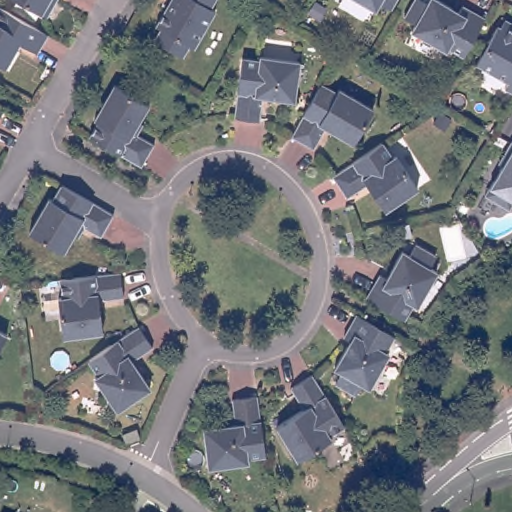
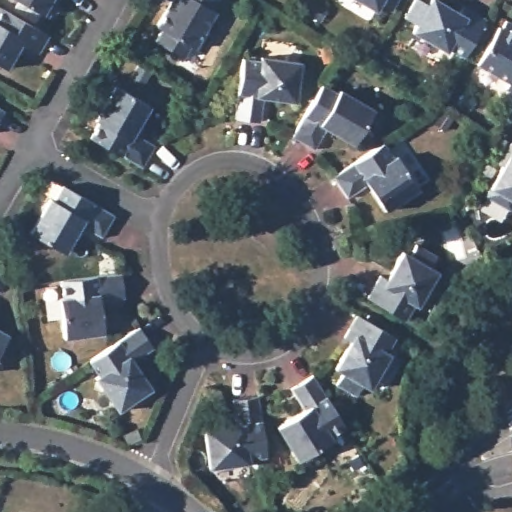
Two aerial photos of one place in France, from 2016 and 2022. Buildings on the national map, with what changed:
unchanged [(9,0),(60,0),(47,22),(42,19),(9,0)]
unchanged [(66,0),(71,0),(69,2),(66,0)]
unchanged [(205,13),(210,16),(188,53),(183,50),(177,62),(149,46),(156,34),(151,31),(169,0),(209,0),(212,2),(205,13)]
unchanged [(384,8),(379,15),(353,0),(404,0),(395,15),(384,8)]
unchanged [(447,47),(445,51),(411,31),(415,24),(404,17),(414,0),(419,0),(427,4),(429,0),(436,0),(458,13),(462,6),(485,19),(463,56),(447,47)]
unchanged [(36,58),(19,48),(5,73),(0,70),(0,12),(47,40),(36,58)]
unchanged [(508,82),(476,64),(497,26),(500,28),(504,20),(512,25),(512,93),(504,88),(508,82)]
unchanged [(242,63),(260,66),(260,62),(300,67),(294,107),(263,102),(259,127),(234,123),(242,63)]
unchanged [(321,89),(337,99),(339,95),(373,115),(353,149),(326,133),(313,155),(291,142),(321,89)]
unchanged [(137,139),(154,149),(141,172),(89,142),(98,127),(94,124),(114,90),(148,110),(139,127),(142,129),(137,139)]
unchanged [(0,122),(0,114),(3,116),(0,122)]
unchanged [(381,147),(391,162),(395,160),(417,193),(383,215),(366,188),(345,202),(331,180),(381,147)]
unchanged [(503,215),(479,201),(497,171),(493,169),(506,147),(512,151),(512,209),(508,206),(503,215)]
unchanged [(73,240),(63,257),(29,237),(49,203),(52,205),(61,190),(113,220),(101,242),(83,232),(77,242),(73,240)]
unchanged [(379,280),(385,284),(401,256),(409,261),(415,250),(435,261),(428,272),(436,276),(416,311),(412,308),(403,324),(366,302),(379,280)]
unchanged [(123,298),(98,301),(102,332),(63,337),(58,298),(62,297),(60,280),(120,272),(123,298)]
unchanged [(388,341),(380,357),(383,359),(363,393),(356,389),(350,400),(330,389),(336,378),(329,373),(345,346),(338,342),(351,320),(388,341)]
unchanged [(6,334),(0,346),(0,331),(6,334)]
unchanged [(153,352),(132,366),(150,392),(117,415),(95,382),(99,380),(89,365),(138,331),(153,352)]
unchanged [(343,431),(328,440),(330,444),(297,465),(276,431),(303,414),(290,393),(312,379),(343,431)]
unchanged [(265,456),(247,458),(248,462),(208,467),(203,428),(235,424),(231,399),(257,396),(265,456)]

